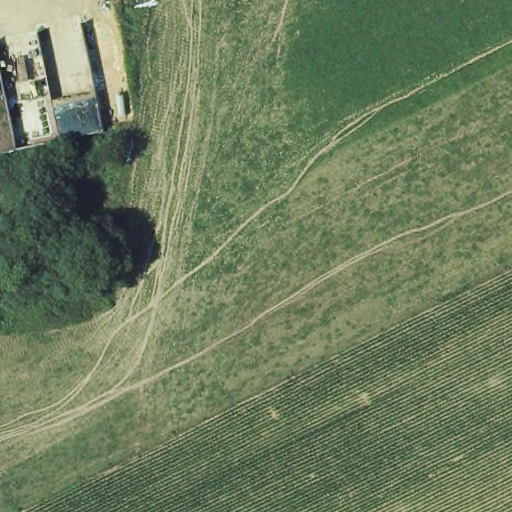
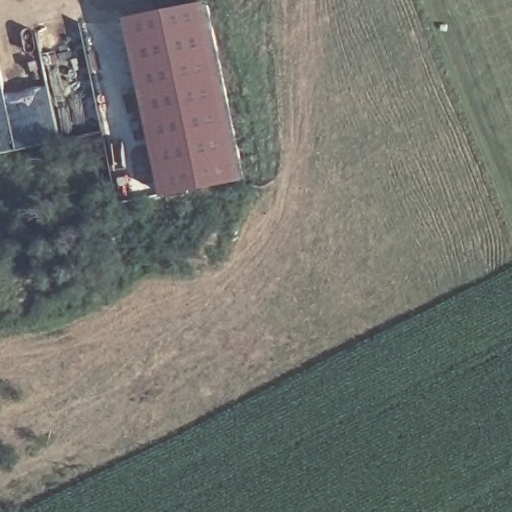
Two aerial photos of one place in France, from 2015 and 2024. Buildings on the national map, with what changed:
new [(210,7),(246,180),(168,196),(132,23),(210,7)]

